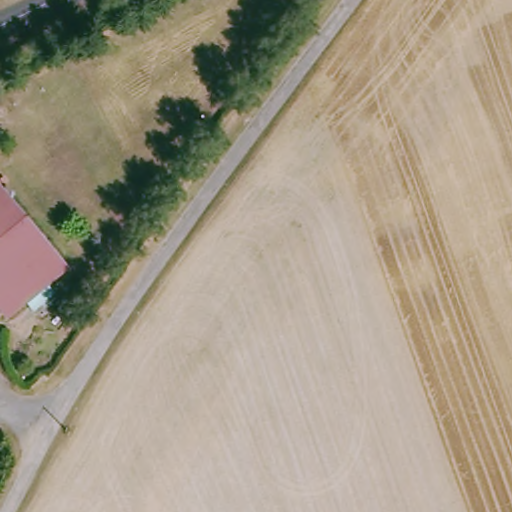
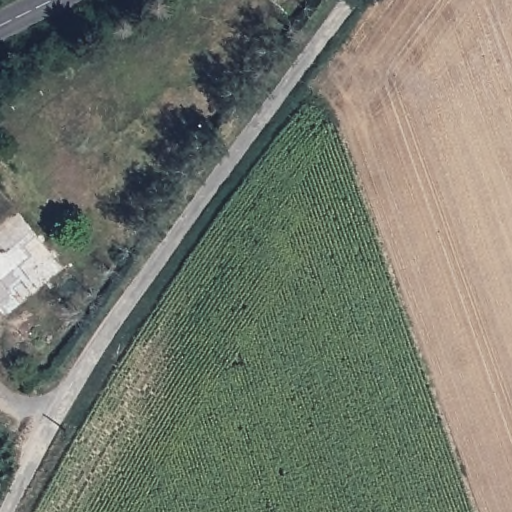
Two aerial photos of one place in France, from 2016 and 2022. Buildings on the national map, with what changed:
unchanged [(60,293),(38,312),(29,302),(8,319),(0,308),(0,188),(67,270),(52,283),(54,285),(60,293)]

